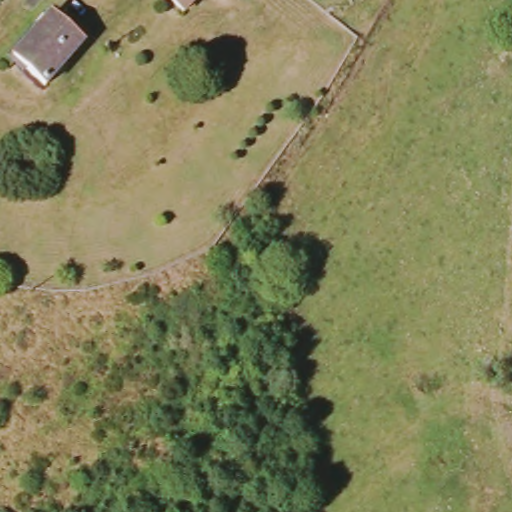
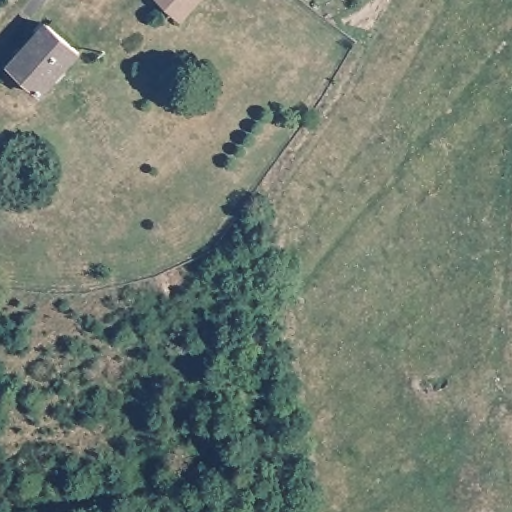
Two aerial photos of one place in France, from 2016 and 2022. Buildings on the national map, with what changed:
unchanged [(161,0),(193,0),(180,15),(161,0)]
unchanged [(37,89),(6,61),(43,19),(75,47),(37,89)]

